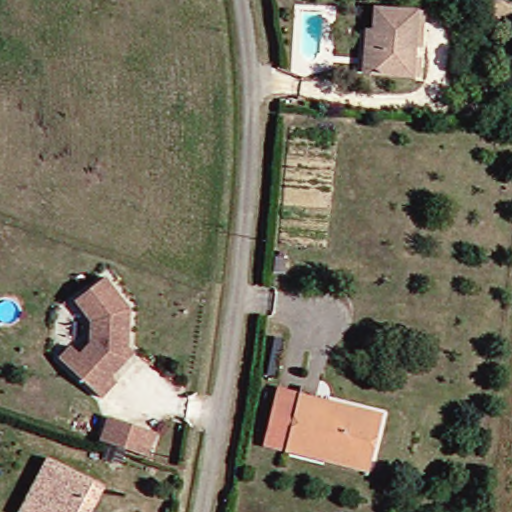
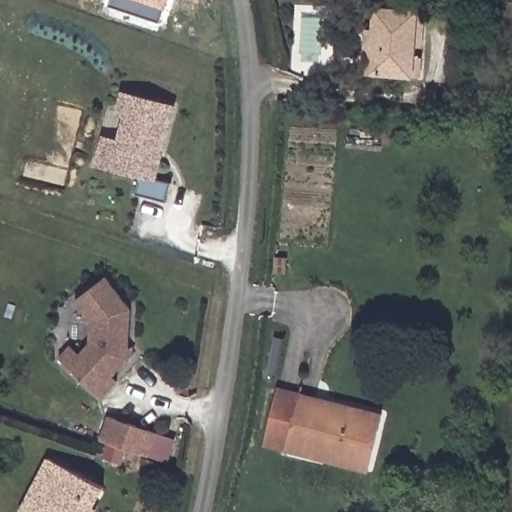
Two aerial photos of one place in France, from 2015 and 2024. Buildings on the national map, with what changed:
new [(161,21),(110,5),(112,0),(170,0),(167,9),(161,21)]
unchanged [(421,81),(375,79),(378,11),(423,13),(421,81)]
new [(155,180),(171,183),(167,202),(135,195),(139,177),(110,170),(123,116),(115,115),(119,95),(171,106),(161,150),(159,162),(155,180)]
unchanged [(70,353),(80,344),(86,322),(70,301),(101,277),(126,310),(117,360),(101,377),(107,383),(91,398),(57,365),(50,356),(61,345),(70,353)]
unchanged [(310,455),(267,442),(281,395),(284,385),(338,401),(387,415),(373,465),(371,472),(310,455)]
unchanged [(100,420),(149,435),(142,459),(93,444),(100,420)]
unchanged [(21,492),(37,461),(92,489),(80,512),(11,512),(21,492)]

